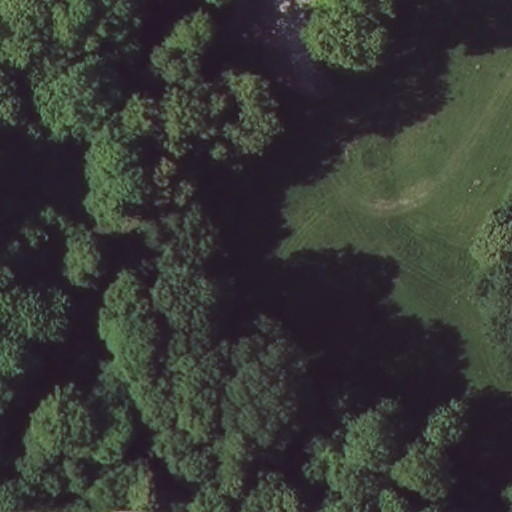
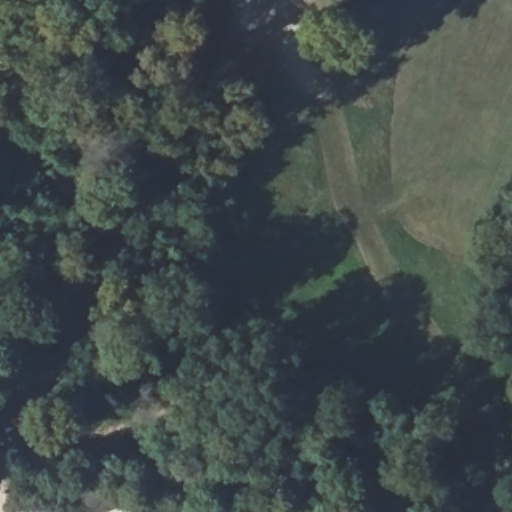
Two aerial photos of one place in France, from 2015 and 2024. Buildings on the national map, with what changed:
[]

